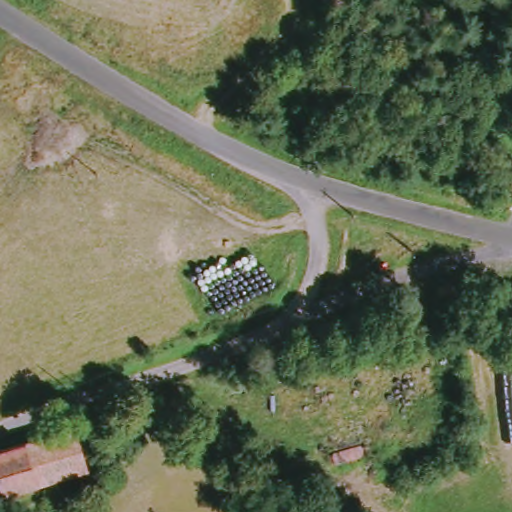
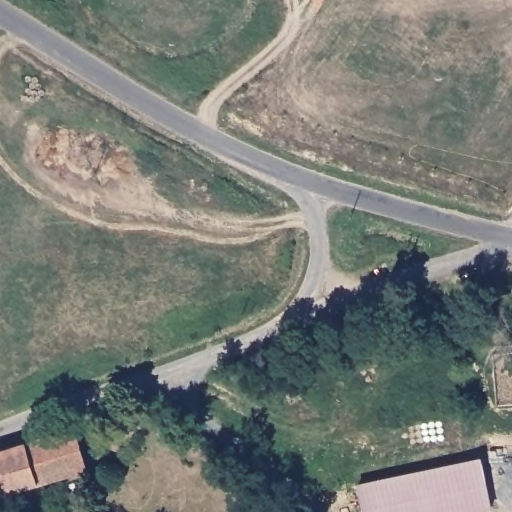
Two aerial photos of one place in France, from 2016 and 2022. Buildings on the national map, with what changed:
unchanged [(92,465),(6,493),(0,472),(0,452),(78,426),(92,465)]
new [(475,455),(485,503),(446,512),(359,512),(352,481),(475,455)]

